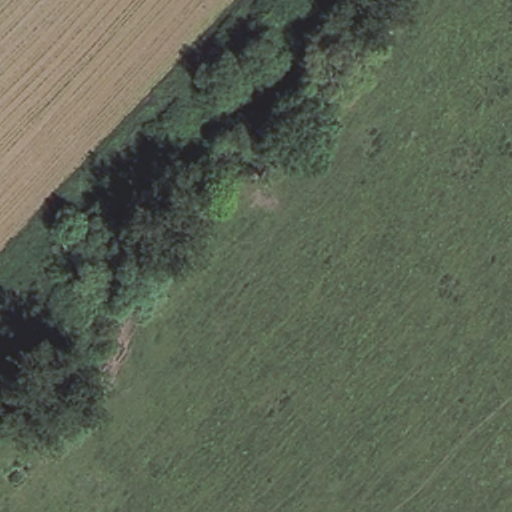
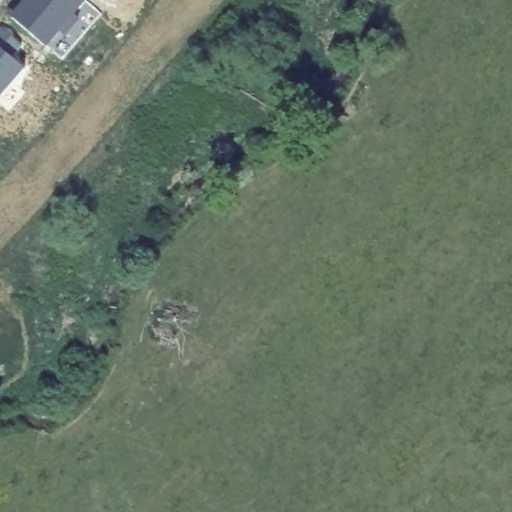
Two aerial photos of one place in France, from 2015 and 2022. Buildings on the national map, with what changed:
new [(87,1),(75,15),(80,18),(65,36),(61,32),(47,48),(10,16),(23,0),(86,0),(87,1)]
new [(2,29),(23,46),(13,59),(27,70),(0,101),(0,31),(2,29)]

